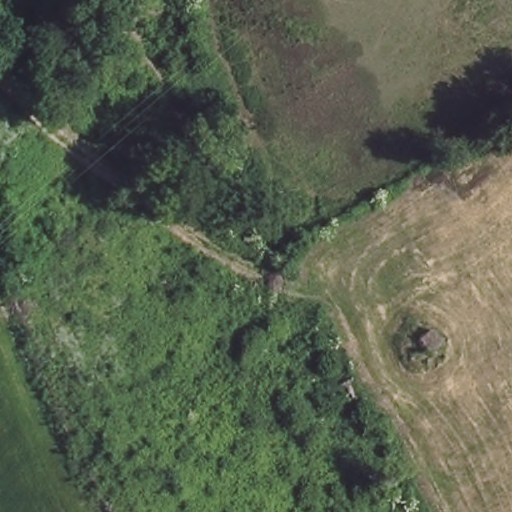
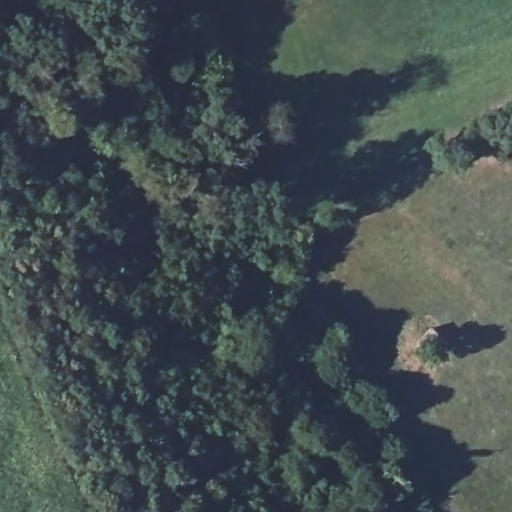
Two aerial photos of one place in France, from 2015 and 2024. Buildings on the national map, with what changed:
unchanged [(445,342),(429,350),(420,334),(436,326),(445,342)]

